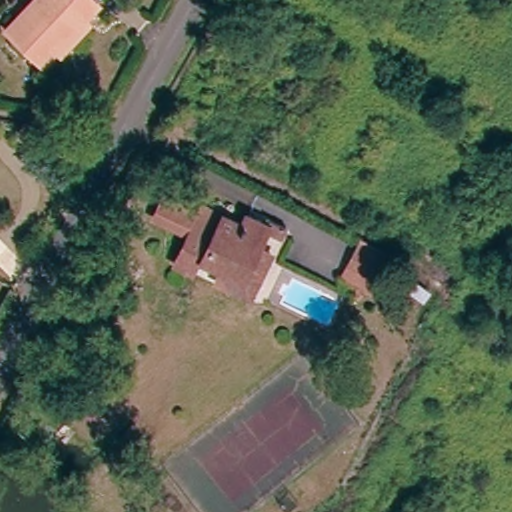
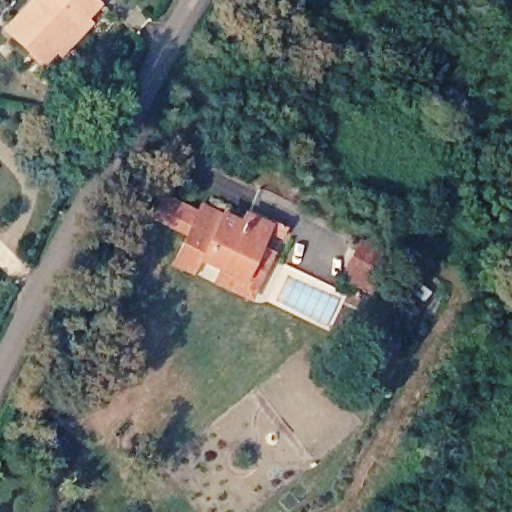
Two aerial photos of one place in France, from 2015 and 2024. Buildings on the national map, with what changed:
unchanged [(69,47),(60,42),(44,61),(9,30),(35,0),(95,0),(86,11),(94,18),(69,47)]
unchanged [(254,251),(240,281),(222,272),(198,261),(191,276),(173,267),(182,249),(189,246),(186,239),(151,222),(160,202),(196,219),(200,209),(223,220),(240,228),(245,219),(265,228),(254,251)]
unchanged [(384,258),(371,281),(345,267),(358,247),(384,258)]
unchanged [(269,258),(248,303),(215,287),(222,272),(240,281),(254,251),(269,258)]

